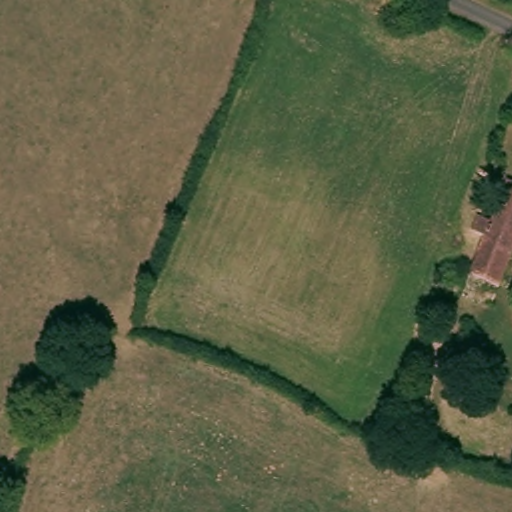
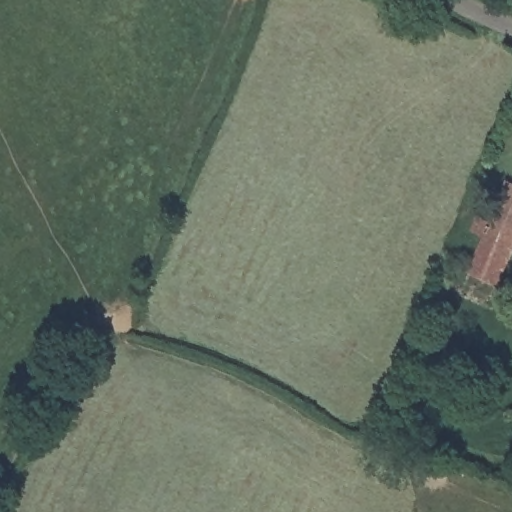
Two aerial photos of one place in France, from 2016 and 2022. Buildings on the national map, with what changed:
unchanged [(482,212),(497,218),(511,181),(512,181),(512,270),(497,307),(469,296),(490,237),(475,231),(482,212)]

